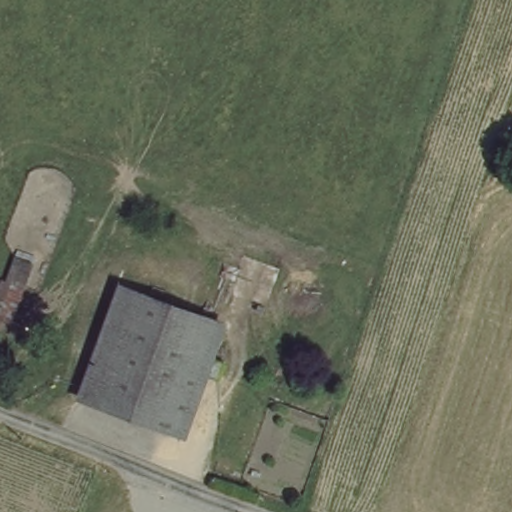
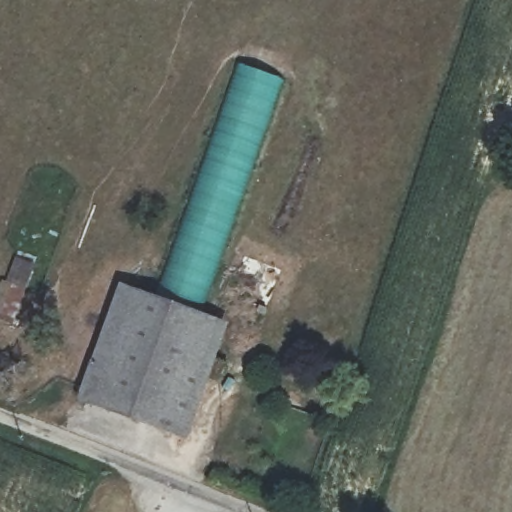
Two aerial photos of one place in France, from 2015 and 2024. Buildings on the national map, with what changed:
new [(205,298),(160,281),(235,65),(283,81),(205,298)]
unchanged [(23,290),(6,283),(16,260),(32,266),(23,290)]
unchanged [(78,391),(122,281),(159,295),(205,312),(220,318),(210,344),(208,350),(225,356),(217,375),(201,370),(178,429),(109,403),(78,391)]

